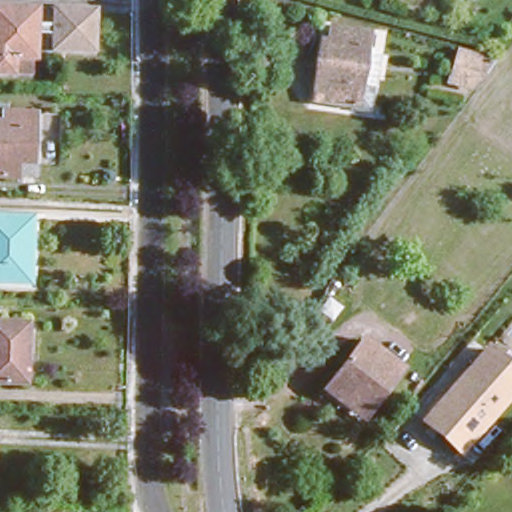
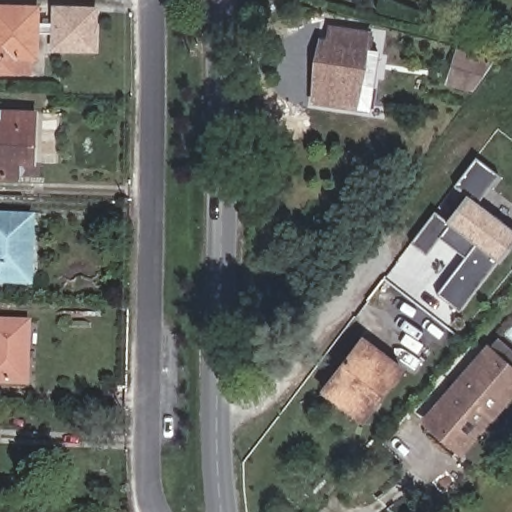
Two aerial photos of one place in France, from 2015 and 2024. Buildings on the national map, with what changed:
unchanged [(0,72),(0,6),(37,7),(37,21),(55,21),(55,7),(95,9),(94,49),(54,47),(55,31),(37,31),(36,58),(30,58),(30,73),(14,73),(0,72)]
unchanged [(362,102),(350,100),(310,94),(318,36),(325,36),(327,23),(362,28),(361,39),(360,39),(358,46),(371,48),(366,81),(362,102)]
unchanged [(471,88),(447,83),(457,52),(491,62),(471,88)]
unchanged [(0,176),(0,111),(31,112),(29,163),(14,162),(13,177),(1,176),(0,176)]
new [(436,211),(450,222),(470,197),(455,186),(477,157),(499,174),(478,202),(512,228),(512,233),(495,256),(499,260),(460,311),(437,294),(466,257),(440,237),(427,254),(412,243),(436,211)]
unchanged [(0,216),(32,216),(30,283),(0,282),(0,216)]
unchanged [(0,382),(0,302),(2,302),(1,321),(34,322),(32,383),(0,382)]
unchanged [(362,421),(322,390),(362,337),(402,368),(362,421)]
unchanged [(465,455),(421,420),(488,343),(512,364),(512,400),(465,455)]

